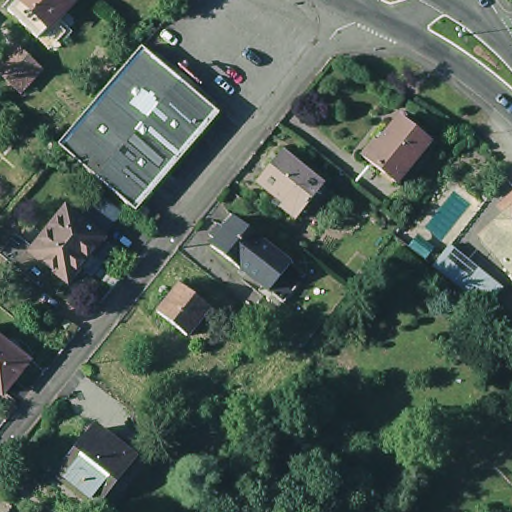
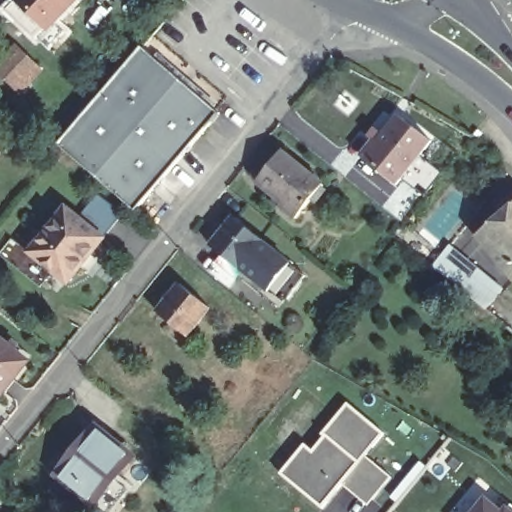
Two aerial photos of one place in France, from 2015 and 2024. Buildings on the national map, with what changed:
unchanged [(51,50),(40,40),(10,11),(16,4),(11,0),(77,0),(55,24),(66,34),(51,50)]
unchanged [(145,49),(221,117),(135,217),(59,149),(145,49)]
unchanged [(42,71),(20,95),(0,77),(0,72),(20,50),(42,71)]
unchanged [(362,155),(375,139),(378,142),(399,115),(430,140),(397,183),(362,155)]
unchanged [(288,152),(329,187),(303,219),(286,206),(289,202),(263,182),(288,152)]
unchanged [(506,279),(495,264),(499,260),(481,240),(505,220),(496,210),(512,197),(512,276),(511,275),(506,279)]
unchanged [(32,247),(68,202),(105,232),(69,277),(63,272),(59,278),(51,272),(48,276),(28,260),(36,250),(32,247)]
unchanged [(307,277),(286,304),(211,245),(232,217),(307,277)]
unchanged [(445,272),(460,254),(501,287),(486,305),(445,272)]
unchanged [(183,341),(154,318),(177,289),(206,312),(183,341)]
unchanged [(2,331),(10,337),(5,342),(30,361),(4,393),(0,390),(0,333),(2,331)]
new [(368,505),(342,484),(322,508),(281,474),(306,444),(313,450),(325,436),(322,434),(348,403),(383,433),(365,455),(391,476),(368,505)]
unchanged [(104,506),(96,499),(61,470),(98,425),(132,453),(110,481),(118,488),(104,506)]
new [(476,512),(486,499),(503,512),(476,512)]
new [(512,502),(512,512),(506,512),(511,502),(512,502)]

